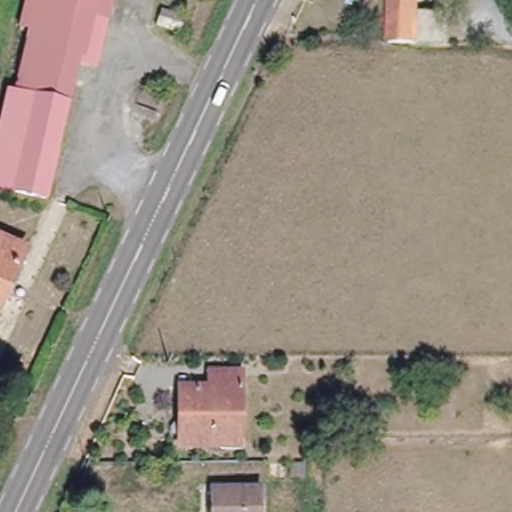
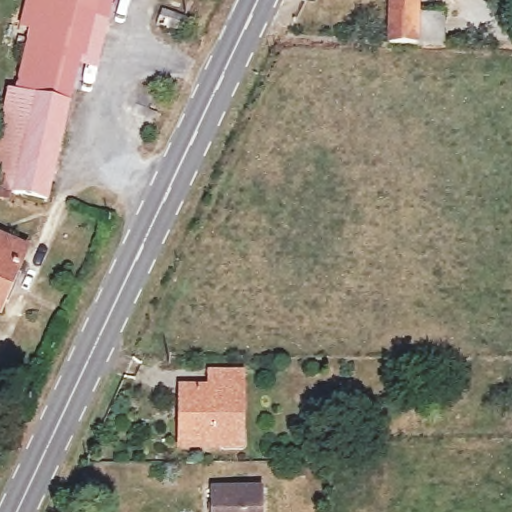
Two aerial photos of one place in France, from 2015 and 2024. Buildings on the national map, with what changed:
unchanged [(20,91),(34,30),(25,28),(31,0),(119,0),(102,71),(86,66),(54,202),(16,193),(12,203),(0,199),(0,110),(5,88),(20,91)]
unchanged [(435,9),(435,6),(446,6),(446,36),(387,39),(388,0),(422,0),(422,9),(435,9)]
unchanged [(186,16),(181,35),(157,27),(161,9),(186,16)]
unchanged [(6,319),(0,317),(0,232),(37,247),(6,319)]
unchanged [(174,384),(202,383),(202,369),(241,370),(241,451),(172,450),(174,384)]
unchanged [(300,464),(300,477),(265,478),(263,464),(300,464)]
unchanged [(258,485),(260,512),(206,512),(207,486),(258,485)]

